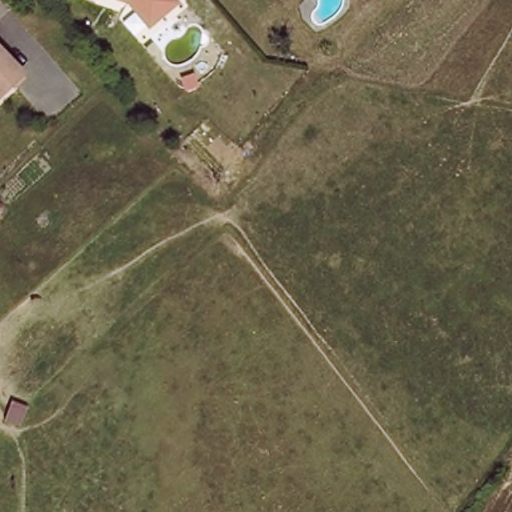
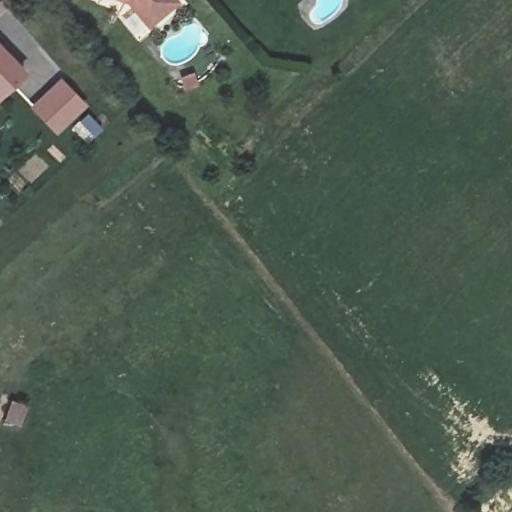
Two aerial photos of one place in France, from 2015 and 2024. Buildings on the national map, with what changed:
unchanged [(153,27),(134,9),(133,2),(128,0),(177,0),(153,27)]
unchanged [(0,95),(0,49),(23,72),(0,95)]
new [(30,107),(62,76),(89,104),(57,135),(44,121),(30,107)]

